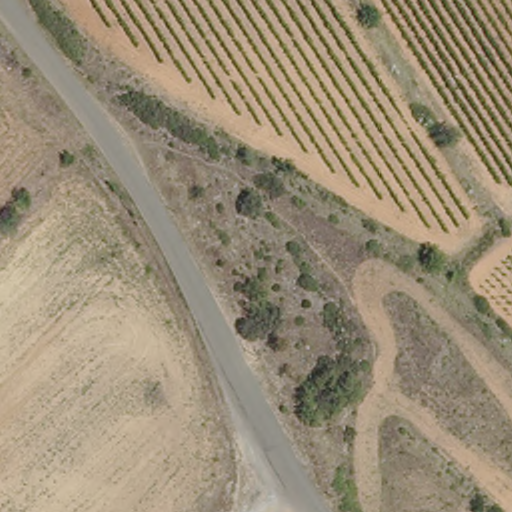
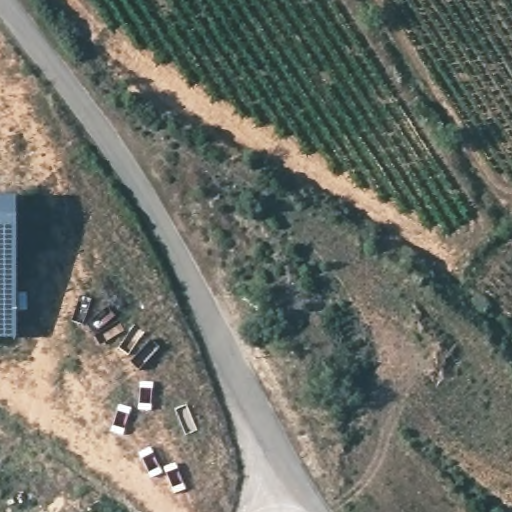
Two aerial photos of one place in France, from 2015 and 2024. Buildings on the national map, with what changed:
new [(16,199),(16,338),(0,338),(0,199),(16,199)]

